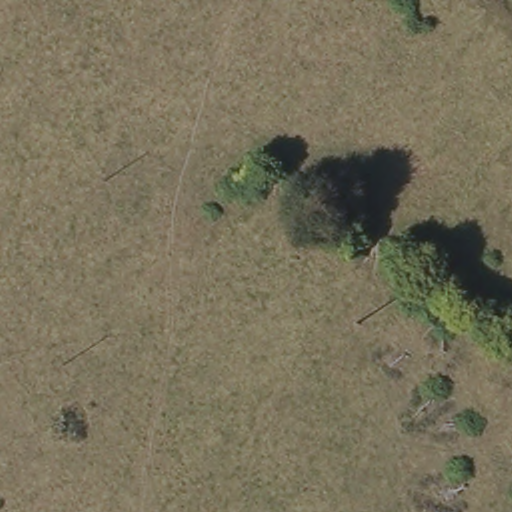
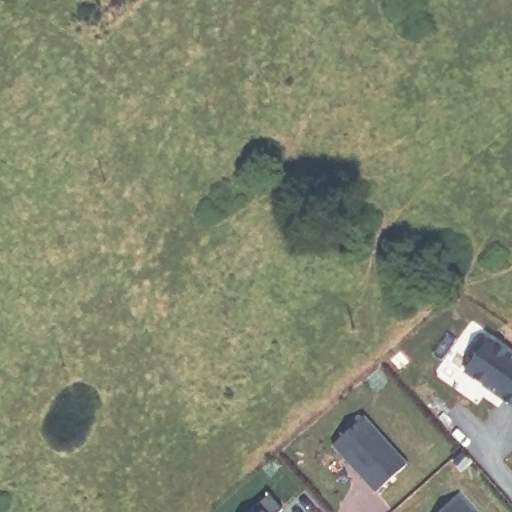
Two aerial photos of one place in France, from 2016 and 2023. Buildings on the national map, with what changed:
new [(512,354),(512,399),(469,370),(492,341),(512,354)]
new [(407,461),(377,489),(336,441),(366,412),(407,461)]
new [(461,493),(478,512),(442,512),(461,493)]
new [(275,512),(260,512),(269,505),(275,512)]

